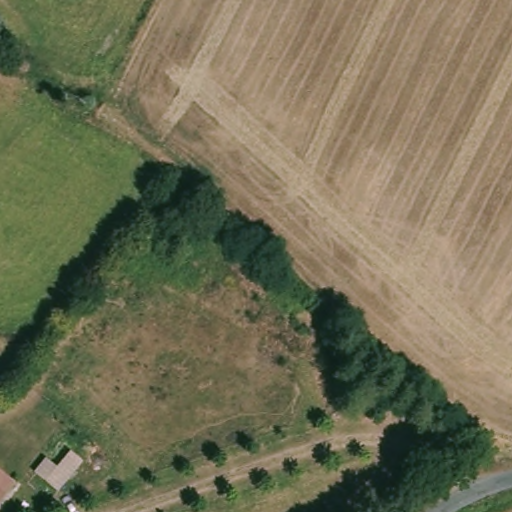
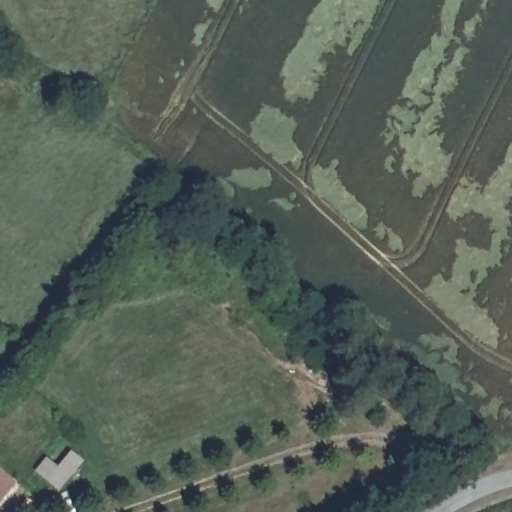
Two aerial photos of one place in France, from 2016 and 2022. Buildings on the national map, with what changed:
unchanged [(9,496),(0,509),(0,466),(19,482),(9,496)]

